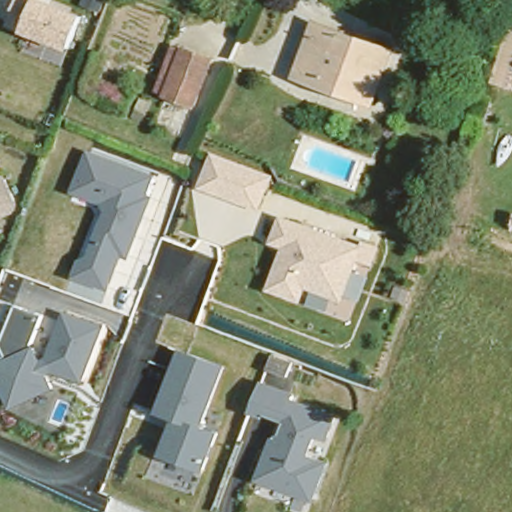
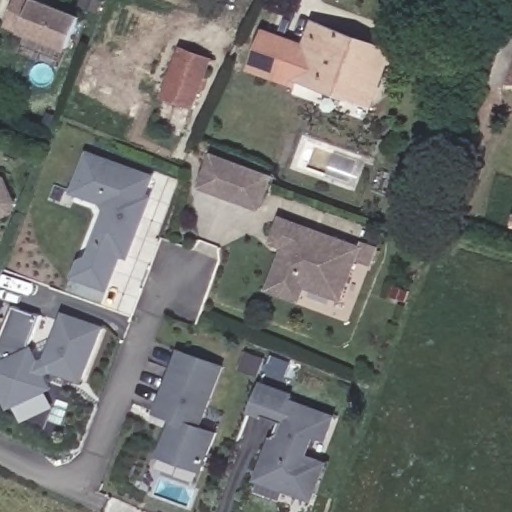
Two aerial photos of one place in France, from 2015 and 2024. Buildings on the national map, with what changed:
unchanged [(6,25),(16,0),(47,0),(84,14),(69,52),(6,25)]
unchanged [(367,92),(296,66),(312,25),(316,14),(336,21),(386,40),(367,92)]
new [(300,88),(250,69),(265,26),(305,42),(296,66),(306,69),(300,88)]
new [(494,83),(511,28),(512,28),(512,88),(494,83)]
unchanged [(193,99),(163,89),(153,84),(169,39),(180,43),(210,54),(193,99)]
demolished [(501,70),(510,42),(512,43),(512,75),(501,70)]
unchanged [(262,214),(197,188),(210,153),(276,178),(262,214)]
unchanged [(142,197),(150,199),(130,254),(120,252),(106,289),(75,279),(83,260),(94,256),(110,207),(74,192),(88,154),(148,177),(142,197)]
unchanged [(0,170),(0,161),(2,161),(0,170)]
unchanged [(0,173),(18,207),(13,219),(0,223),(0,173)]
unchanged [(378,269),(359,263),(356,274),(370,279),(361,303),(345,297),(343,302),(334,297),(329,314),(308,307),(312,293),(308,291),(303,304),(267,290),(283,250),(270,244),(280,218),(360,244),(362,241),(385,249),(378,269)]
unchanged [(0,341),(0,339),(12,305),(44,317),(33,343),(41,364),(46,374),(52,389),(11,409),(0,383),(0,366),(9,362),(0,341)]
unchanged [(63,313),(105,327),(79,385),(46,374),(41,364),(63,313)]
unchanged [(208,408),(223,413),(203,471),(196,469),(190,487),(161,477),(168,458),(161,455),(174,419),(156,411),(181,351),(222,367),(208,408)]
unchanged [(295,392),(293,399),(338,415),(329,441),(316,438),(310,456),(330,462),(315,502),(256,482),(269,437),(275,439),(281,423),(250,413),(262,381),(295,392)]

